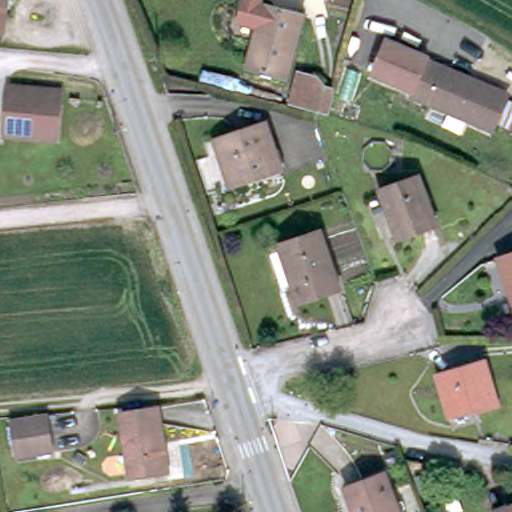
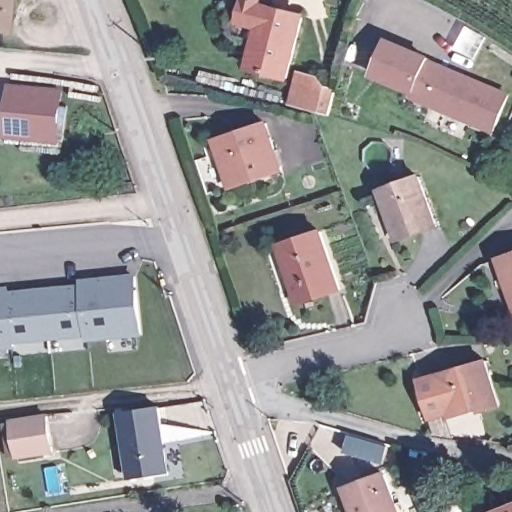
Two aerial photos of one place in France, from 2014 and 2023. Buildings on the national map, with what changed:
unchanged [(0,32),(0,0),(13,0),(9,33),(0,32)]
unchanged [(287,78),(249,68),(257,30),(240,25),(243,0),(266,0),(265,8),(302,17),(287,78)]
unchanged [(492,126),(412,96),(414,91),(371,75),(385,41),(427,56),(426,58),(446,65),(469,74),(507,90),(492,126)]
unchanged [(9,133),(15,93),(17,76),(71,83),(69,100),(65,141),(9,133)]
unchanged [(327,116),(315,113),(313,113),(304,110),(310,86),(319,88),(335,91),(327,116)]
unchanged [(266,124),(282,171),(254,180),(252,175),(231,182),(217,140),(266,124)]
unchanged [(418,179),(435,226),(397,240),(387,211),(390,210),(382,192),(418,179)]
unchanged [(319,228),(339,284),(298,299),(293,284),(295,283),(281,242),(319,228)]
unchanged [(512,248),(512,305),(508,293),(511,293),(497,253),(512,248)]
new [(81,282),(81,278),(137,273),(144,336),(87,342),(86,337),(16,344),(17,348),(0,350),(0,286),(9,285),(10,290),(81,282)]
unchanged [(450,409),(439,371),(485,358),(501,402),(490,406),(488,401),(451,412),(450,409)]
unchanged [(169,469),(131,475),(120,414),(159,408),(169,469)]
unchanged [(54,450),(19,454),(14,425),(52,422),(54,450)]
unchanged [(346,485),(385,470),(400,512),(356,512),(346,485)]
unchanged [(492,511),(512,503),(512,512),(493,512),(492,511)]

